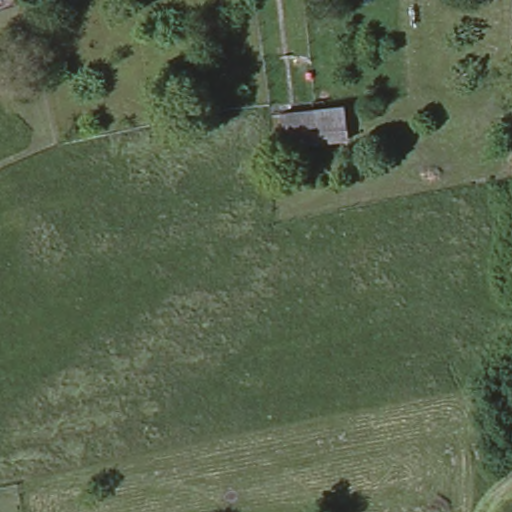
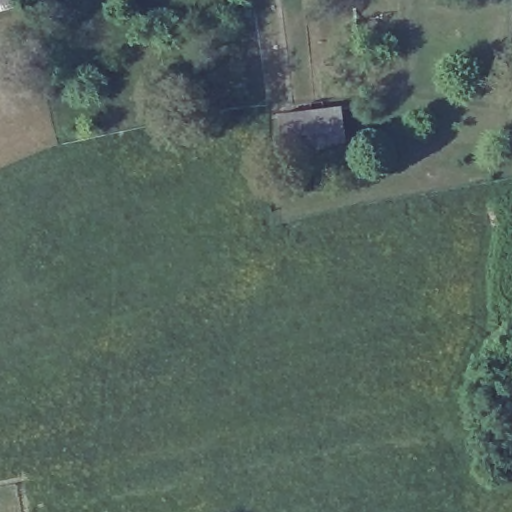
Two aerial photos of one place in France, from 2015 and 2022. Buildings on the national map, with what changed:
unchanged [(282,112),(345,106),(345,140),(287,146),(282,112)]

